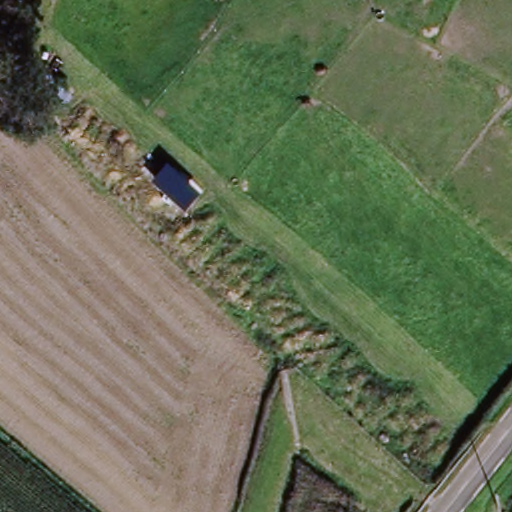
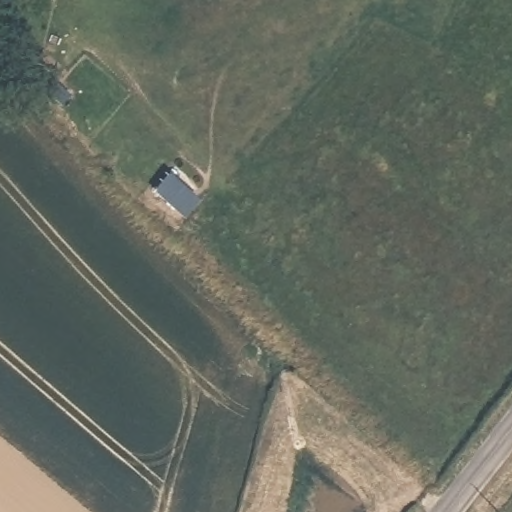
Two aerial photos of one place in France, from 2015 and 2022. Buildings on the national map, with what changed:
[]

